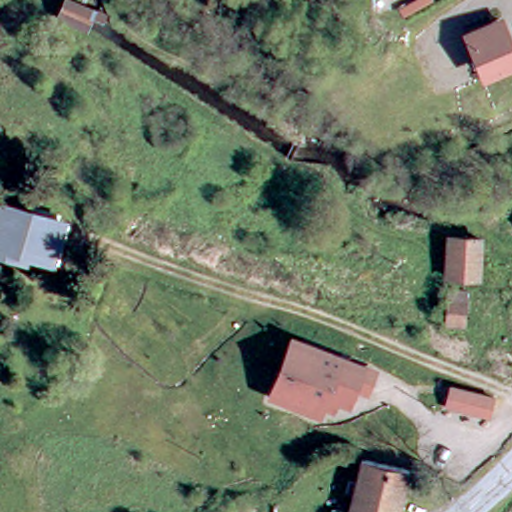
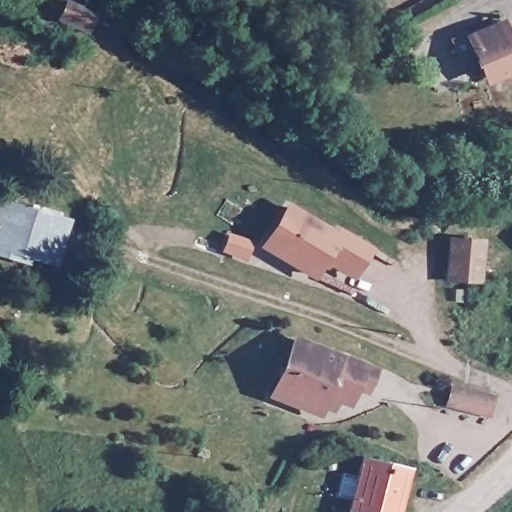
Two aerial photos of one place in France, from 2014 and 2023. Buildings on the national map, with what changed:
unchanged [(61,18),(67,1),(98,11),(92,29),(61,18)]
unchanged [(502,20),(512,42),(512,74),(487,85),(466,35),(502,20)]
new [(373,246),(355,278),(325,262),(315,280),(258,247),(285,200),(334,229),(336,225),(373,246)]
unchanged [(65,230),(47,270),(22,258),(20,263),(0,255),(0,215),(5,204),(65,230)]
unchanged [(480,240),(480,276),(451,275),(452,239),(480,240)]
demolished [(447,321),(449,286),(468,287),(467,322),(447,321)]
unchanged [(293,335),(378,368),(368,392),(360,388),(350,403),(340,400),(334,411),(322,408),(320,416),(267,397),(293,335)]
unchanged [(492,420),(443,405),(450,388),(498,403),(492,420)]
unchanged [(404,512),(354,512),(364,460),(412,470),(404,512)]

